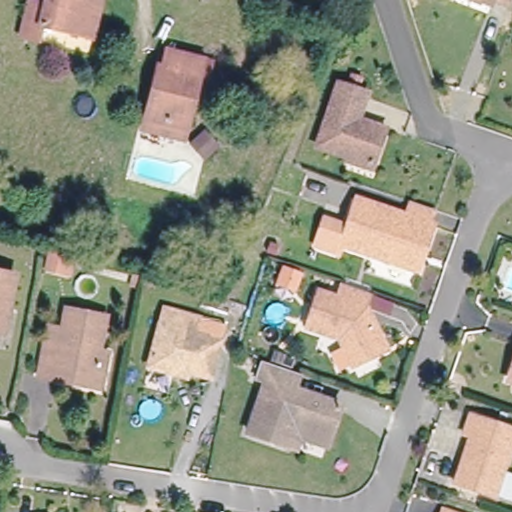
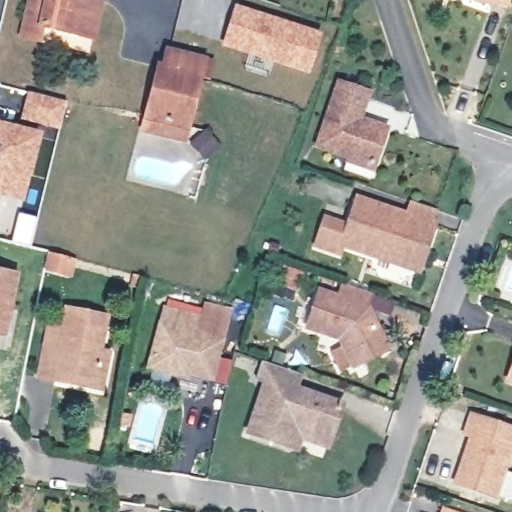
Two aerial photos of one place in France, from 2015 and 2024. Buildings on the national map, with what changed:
unchanged [(46,7),(47,0),(53,0),(90,0),(103,0),(95,40),(81,36),(50,30),(47,45),(39,43),(36,54),(19,49),(21,39),(29,4),(46,7)]
unchanged [(486,0),(489,0),(489,1),(486,0)]
new [(234,3),(323,33),(308,75),(220,45),(234,3)]
unchanged [(144,125),(148,112),(152,95),(157,79),(161,62),(165,64),(170,47),(170,46),(204,55),(212,57),(208,74),(200,72),(187,122),(183,135),(144,125)]
unchanged [(338,82),(365,91),(357,116),(384,125),(371,165),(317,146),(338,82)]
new [(26,91),(66,102),(58,131),(18,121),(26,91)]
new [(42,134),(23,201),(0,196),(0,122),(42,134)]
new [(205,129),(220,145),(203,160),(188,145),(205,129)]
unchanged [(329,219),(350,226),(359,200),(437,225),(421,270),(346,244),(342,256),(319,248),(329,219)]
unchanged [(415,200),(437,207),(432,222),(409,215),(415,200)]
new [(17,212),(37,217),(29,246),(10,242),(17,212)]
unchanged [(49,254),(56,255),(66,258),(63,275),(45,271),(49,254)]
unchanged [(16,275),(3,333),(0,333),(0,272),(16,275)]
unchanged [(312,290),(331,297),(335,283),(365,294),(360,307),(394,340),(368,366),(345,343),(300,327),(312,290)]
new [(163,305),(166,306),(168,300),(202,308),(204,302),(233,308),(220,358),(232,361),(227,385),(212,382),(203,378),(213,342),(188,335),(193,318),(162,310),(163,305)]
unchanged [(95,384),(51,375),(33,371),(39,342),(44,320),(58,322),(62,303),(101,311),(93,345),(103,347),(95,384)]
unchanged [(167,375),(142,367),(158,309),(193,318),(188,335),(213,342),(203,378),(182,372),(180,377),(167,375)]
unchanged [(299,439),(295,450),(282,446),(246,434),(265,381),(254,377),(259,361),(298,374),(292,390),(338,406),(328,436),(324,447),(299,439)]
unchanged [(512,368),(512,381),(508,379),(512,368)]
unchanged [(465,436),(458,433),(466,414),(511,430),(488,495),(448,480),(465,436)]
unchanged [(442,510),(448,512),(441,512),(442,510)]

